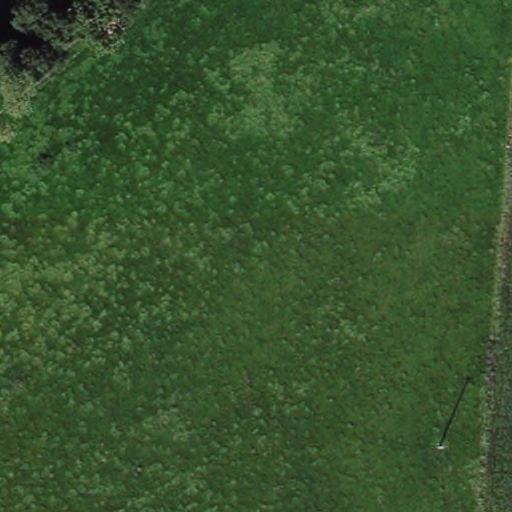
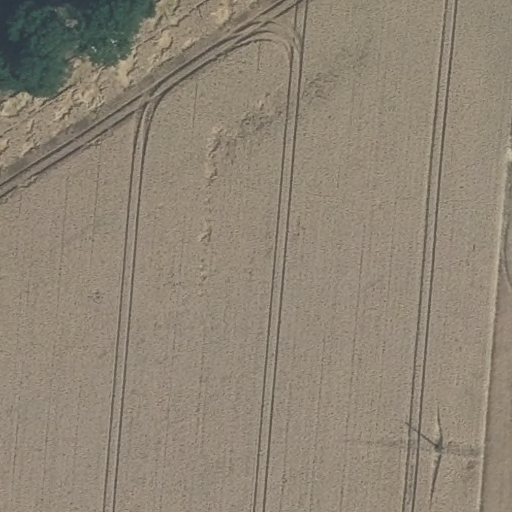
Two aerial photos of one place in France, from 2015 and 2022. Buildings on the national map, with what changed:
[]

